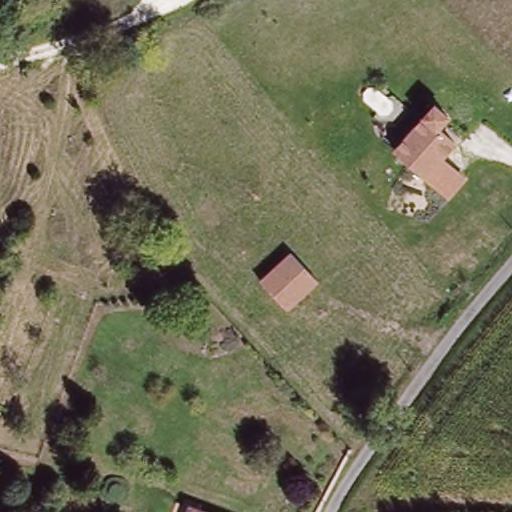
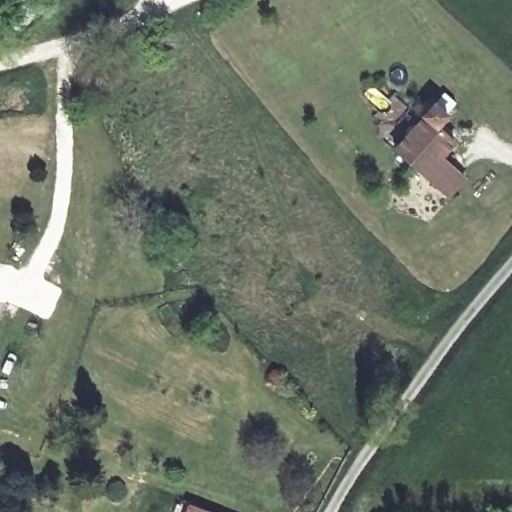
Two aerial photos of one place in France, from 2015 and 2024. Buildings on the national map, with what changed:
unchanged [(430,179),(398,151),(437,106),(450,117),(441,127),(457,143),(445,159),(467,177),(452,197),(430,179)]
demolished [(285,308),(258,281),(289,252),(314,279),(285,308)]
unchanged [(194,512),(194,511),(196,512),(194,512)]

